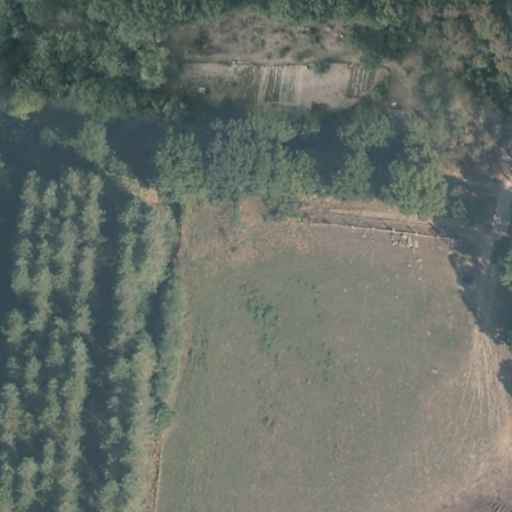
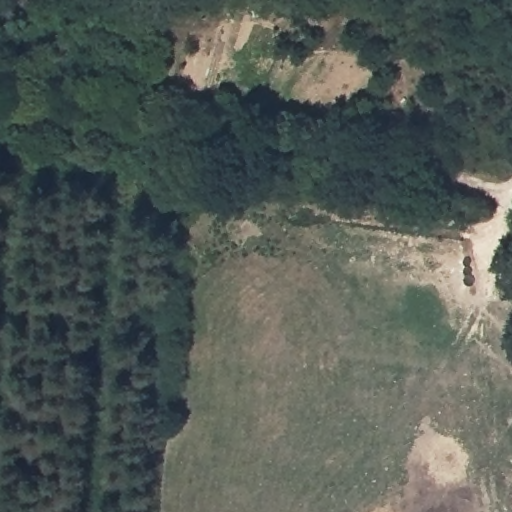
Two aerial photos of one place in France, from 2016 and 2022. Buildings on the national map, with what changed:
unchanged [(411,109),(409,124),(425,125),(422,148),(369,142),(371,124),(374,105),(411,109)]

